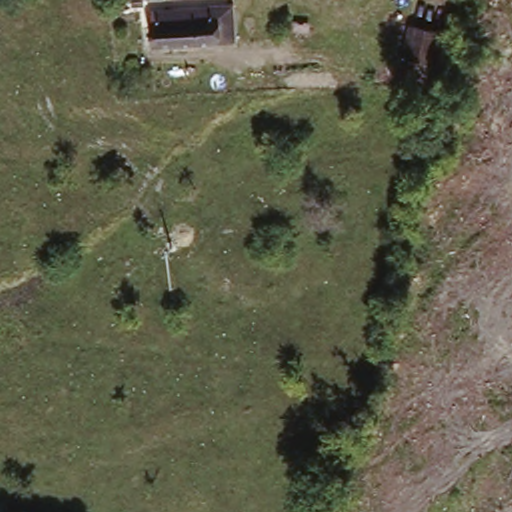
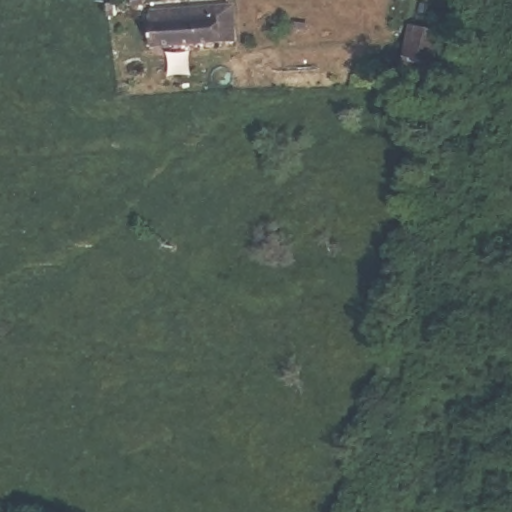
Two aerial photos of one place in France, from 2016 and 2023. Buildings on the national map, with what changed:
unchanged [(215,0),(255,0),(257,36),(170,41),(167,3),(215,0)]
unchanged [(426,57),(386,47),(395,3),(436,15),(426,57)]

